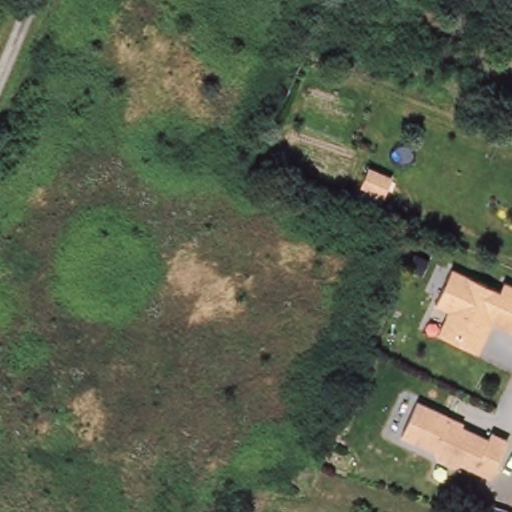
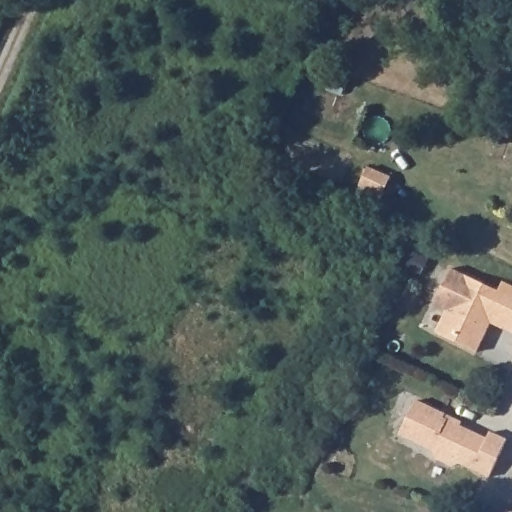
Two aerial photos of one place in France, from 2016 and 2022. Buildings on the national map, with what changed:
unchanged [(502,292),(504,283),(512,286),(512,335),(492,328),(479,354),(439,336),(449,315),(437,309),(451,272),(502,292)]
unchanged [(489,432),(506,440),(489,477),(459,464),(451,466),(436,459),(433,451),(399,436),(414,401),(444,415),(460,422),(458,426),(486,439),(489,432)]

